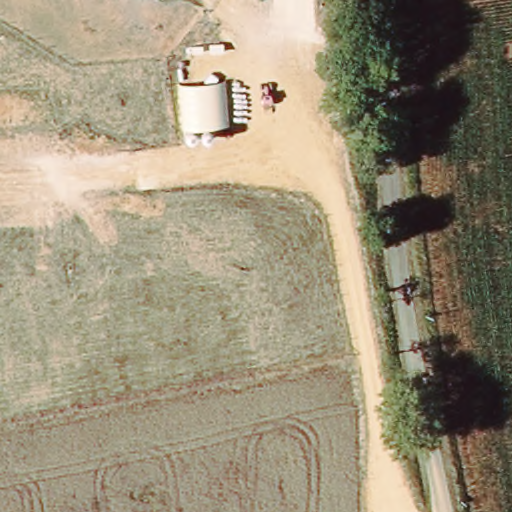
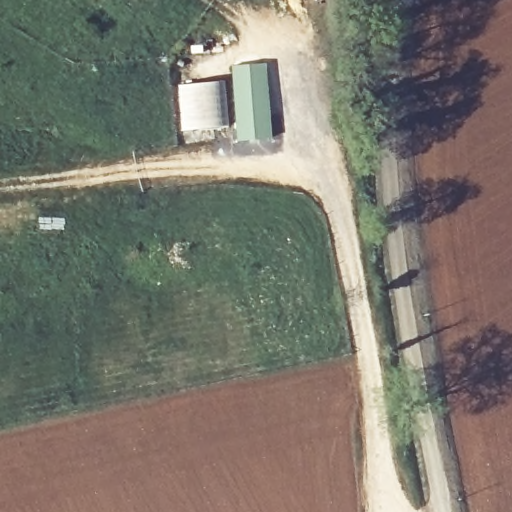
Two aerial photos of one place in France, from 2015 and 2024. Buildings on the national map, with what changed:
new [(267,62),(273,140),(237,142),(230,66),(267,62)]
unchanged [(223,83),(227,130),(184,134),(179,86),(223,83)]

